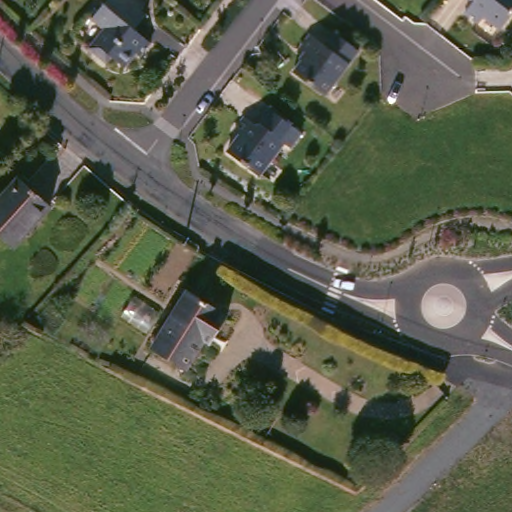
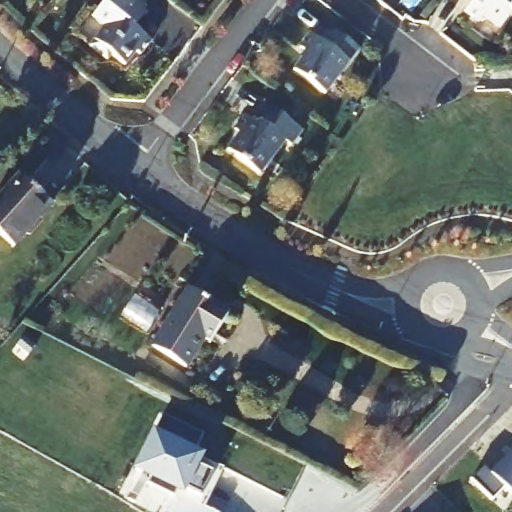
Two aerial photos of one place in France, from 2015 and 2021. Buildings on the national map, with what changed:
unchanged [(158,0),(159,1),(141,22),(162,40),(151,54),(147,50),(135,65),(123,54),(121,56),(115,57),(101,45),(117,26),(104,16),(118,0),(158,0)]
unchanged [(493,15),(488,21),(474,10),(482,0),(512,0),(512,25),(509,28),(493,15)]
unchanged [(345,30),(369,50),(334,94),(303,69),(317,51),(310,46),(321,32),(335,43),(345,31),(345,30)]
unchanged [(303,145),(297,140),(272,173),(240,149),(253,132),(247,127),(258,114),(268,121),(274,121),(285,107),(314,130),(303,145)]
unchanged [(27,247),(0,222),(0,210),(32,176),(65,208),(27,247)]
unchanged [(240,316),(223,341),(218,337),(196,370),(162,346),(200,289),(240,316)]
new [(200,506),(187,500),(191,493),(175,485),(170,496),(144,483),(148,475),(132,468),(159,414),(200,433),(190,452),(220,467),(200,506)]
new [(471,482),(484,468),(491,473),(512,453),(512,496),(511,496),(504,488),(491,502),(471,482)]

